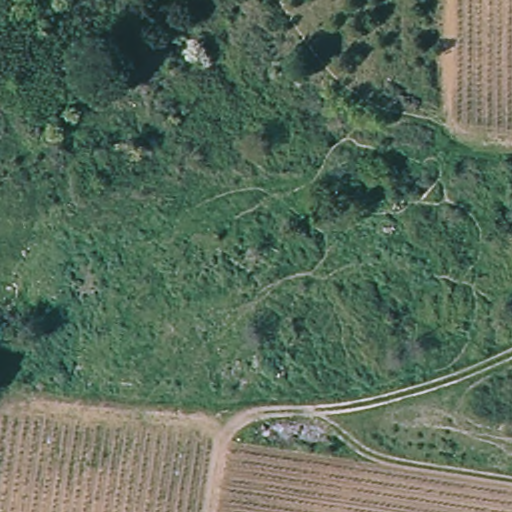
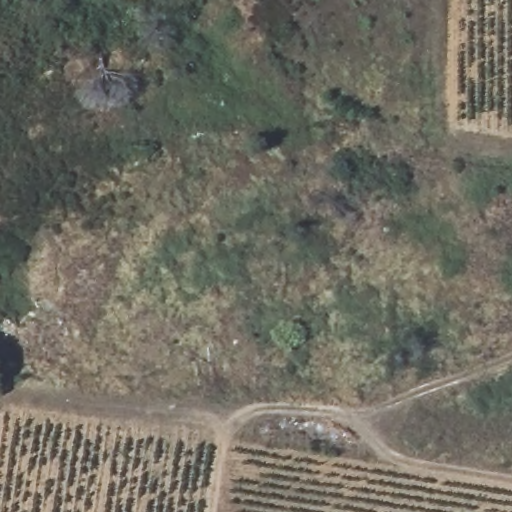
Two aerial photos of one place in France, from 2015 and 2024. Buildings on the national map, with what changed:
unchanged [(270,97),(262,113),(245,105),(254,89),(270,97)]

